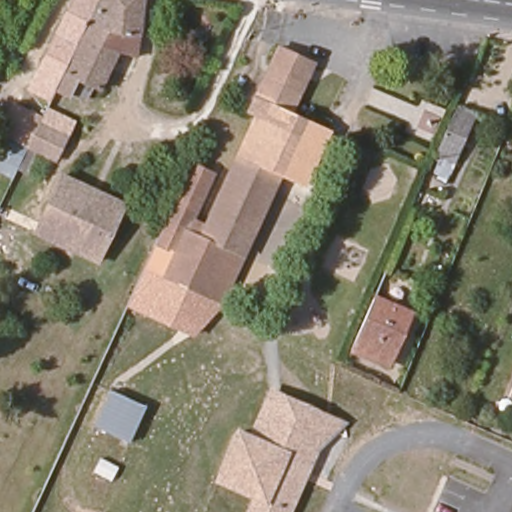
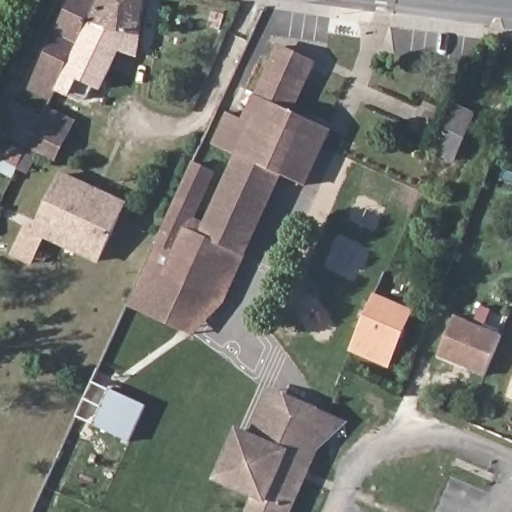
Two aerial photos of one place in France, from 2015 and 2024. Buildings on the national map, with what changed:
unchanged [(53,92),(46,87),(49,81),(38,74),(74,0),(98,0),(53,92)]
unchanged [(136,58),(118,50),(101,89),(82,79),(73,92),(61,86),(102,0),(146,0),(136,58)]
unchanged [(248,109),(281,44),(315,61),(291,113),(303,119),(296,134),(256,114),(248,109)]
unchanged [(473,116),(451,164),(434,156),(456,107),(473,116)]
unchanged [(256,114),(296,134),(279,174),(237,154),(256,114)]
unchanged [(40,170),(46,159),(27,149),(41,118),(69,132),(56,163),(51,174),(40,170)]
unchanged [(332,130),(307,187),(279,174),(296,134),(303,119),(332,130)]
demolished [(74,142),(101,155),(93,175),(63,161),(74,142)]
unchanged [(126,306),(155,236),(190,159),(212,169),(192,213),(207,220),(237,154),(279,174),(242,253),(219,301),(192,337),(126,306)]
unchanged [(41,215),(62,170),(123,199),(94,259),(76,249),(35,229),(41,215)]
unchanged [(411,314),(390,367),(354,352),(376,301),(411,314)]
new [(437,357),(454,316),(502,336),(485,377),(437,357)]
unchanged [(110,388),(146,404),(128,440),(94,425),(110,388)]
unchanged [(214,483),(238,428),(252,435),(270,389),(348,425),(319,452),(292,512),(248,512),(258,500),(214,483)]
unchanged [(511,400),(512,398),(512,400),(511,400)]

